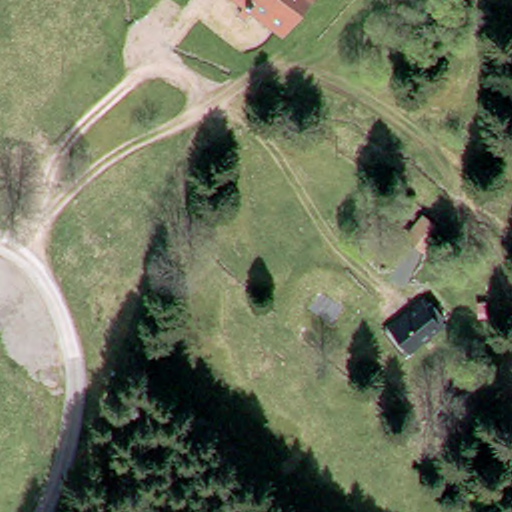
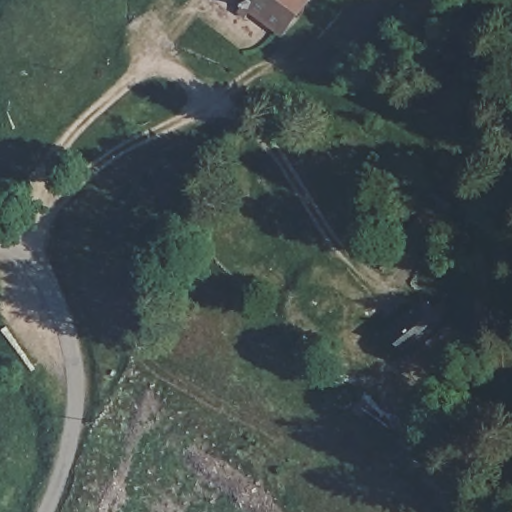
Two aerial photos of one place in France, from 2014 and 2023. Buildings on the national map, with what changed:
unchanged [(249,19),(235,9),(241,0),(309,0),(285,31),(257,9),(249,19)]
unchanged [(418,346),(398,323),(426,299),(446,321),(418,346)]

